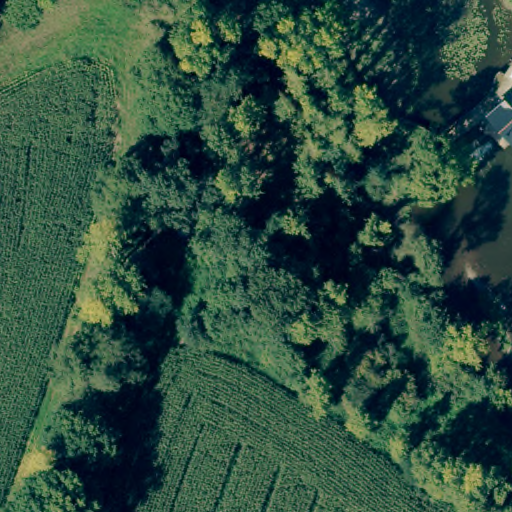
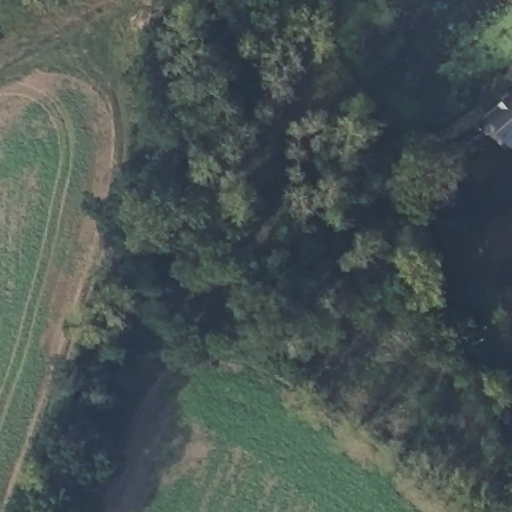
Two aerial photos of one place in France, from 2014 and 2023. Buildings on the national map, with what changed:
unchanged [(510,141),(486,115),(512,93),(512,143),(510,141)]

